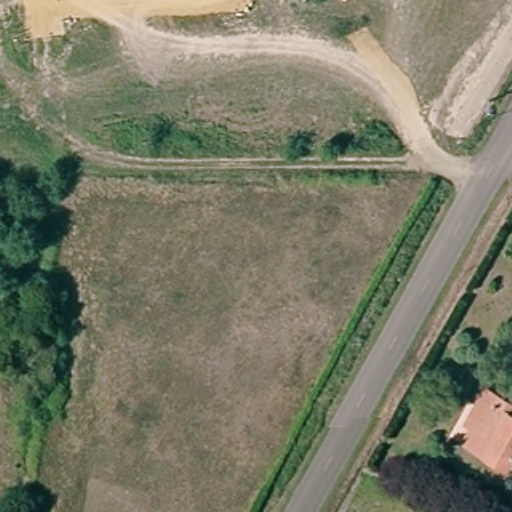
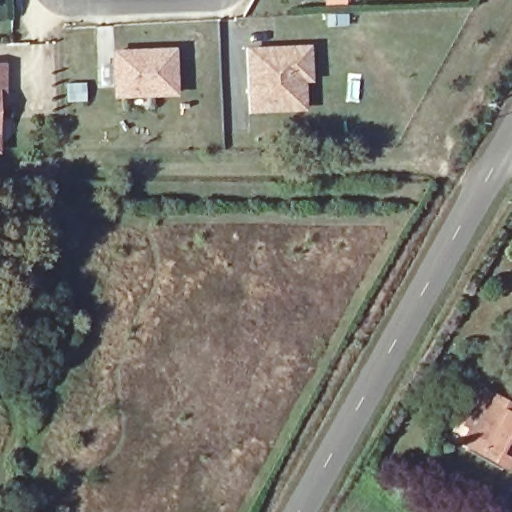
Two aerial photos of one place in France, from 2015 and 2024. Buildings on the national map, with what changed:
new [(289,104),(251,105),(249,45),(308,43),(310,74),(302,74),(303,103),(289,104)]
new [(116,90),(115,58),(115,48),(122,47),(174,45),(175,88),(150,89),(151,104),(126,105),(126,90),(116,90)]
new [(4,105),(0,105),(0,64),(4,64),(4,89),(4,105)]
unchanged [(486,390),(512,404),(512,458),(506,454),(501,462),(484,452),(459,437),(476,407),(486,390)]

